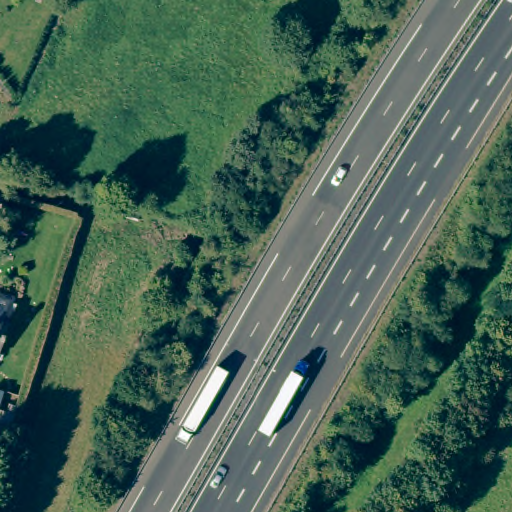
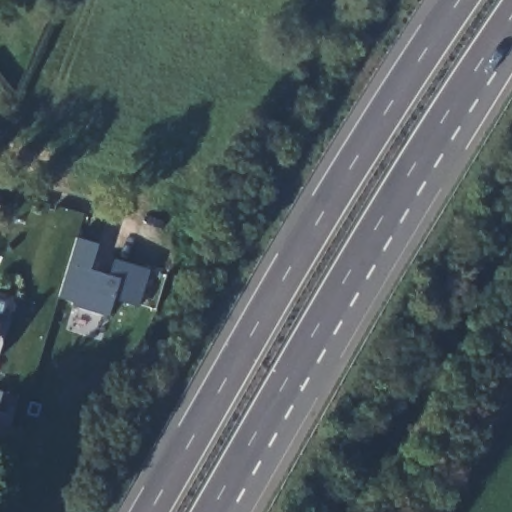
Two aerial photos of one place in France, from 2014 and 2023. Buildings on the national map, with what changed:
unchanged [(0,210),(0,195),(3,196),(0,210)]
new [(141,307),(115,298),(108,318),(74,307),(75,303),(60,297),(79,238),(101,245),(93,270),(111,276),(115,259),(151,271),(141,307)]
unchanged [(3,305),(0,319),(0,304),(3,305)]
unchanged [(5,322),(0,346),(0,321),(5,322)]

